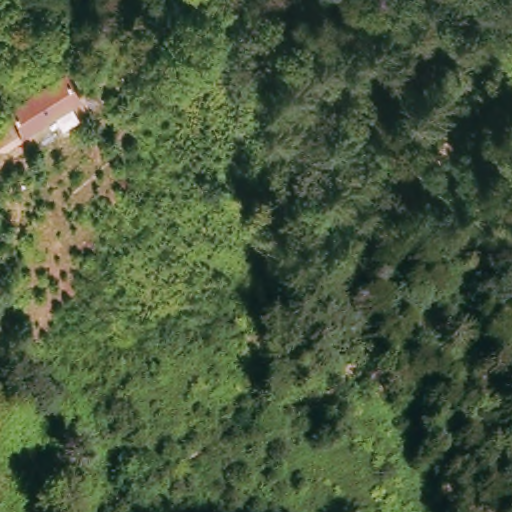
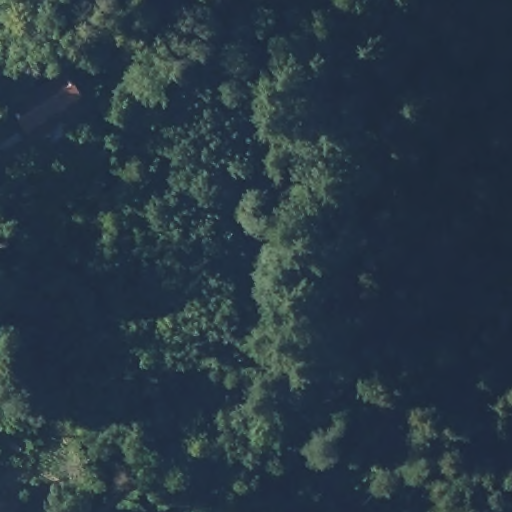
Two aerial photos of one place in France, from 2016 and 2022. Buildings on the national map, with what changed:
unchanged [(33,129),(18,109),(67,72),(83,92),(33,129)]

